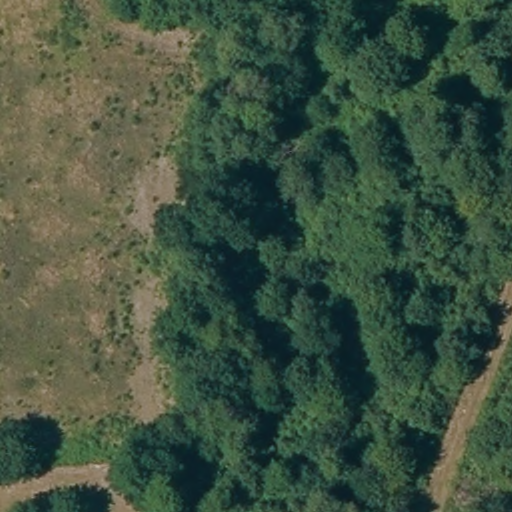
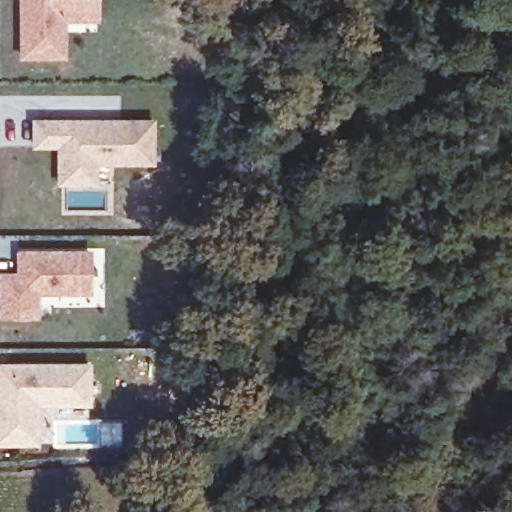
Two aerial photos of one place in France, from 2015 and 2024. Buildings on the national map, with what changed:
new [(98,21),(65,21),(66,59),(17,60),(17,0),(98,0),(98,21)]
new [(154,119),(154,165),(98,165),(98,186),(55,186),(55,149),(31,149),(31,118),(154,119)]
new [(90,251),(90,295),(39,294),(38,318),(0,318),(0,272),(15,272),(15,251),(90,251)]
new [(91,362),(90,406),(39,406),(38,446),(0,447),(0,363),(91,362)]

